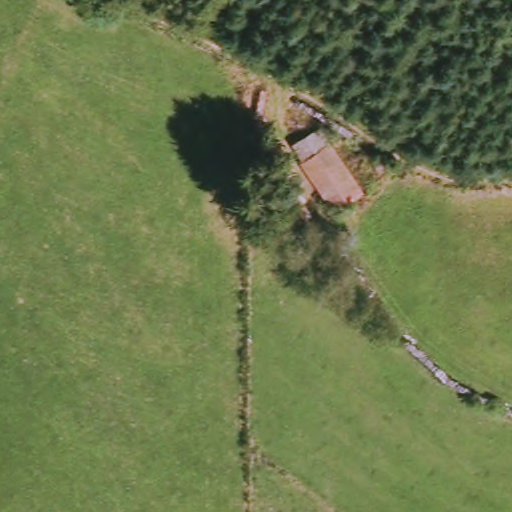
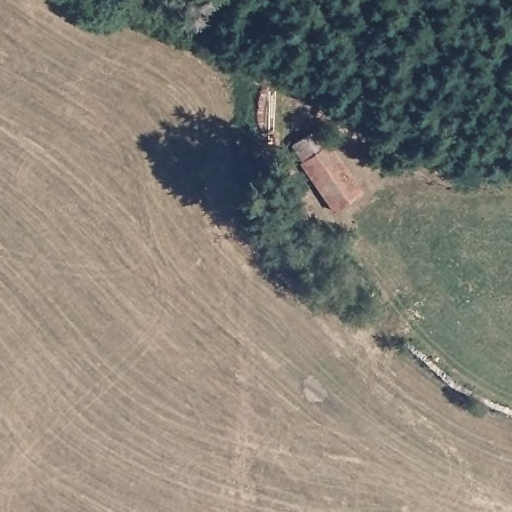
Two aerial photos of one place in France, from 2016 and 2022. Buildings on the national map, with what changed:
unchanged [(309,164),(313,161),(304,146),(327,131),(371,194),(343,213),(309,164)]

